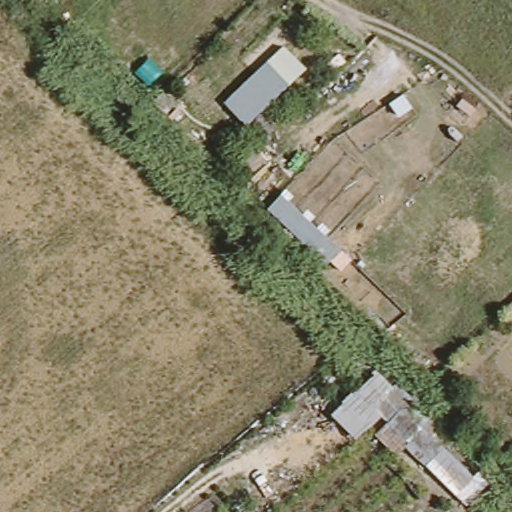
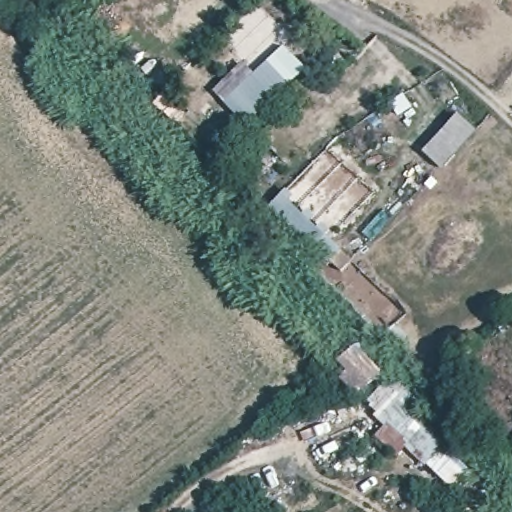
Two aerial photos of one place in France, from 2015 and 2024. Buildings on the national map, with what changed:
unchanged [(224,101),(284,45),(307,68),(247,123),(224,101)]
new [(476,131),(441,170),(422,152),(455,114),(476,131)]
unchanged [(329,260),(326,263),(268,209),(281,193),(340,249),(351,261),(340,271),(329,260)]
unchanged [(377,370),(395,386),(398,383),(450,438),(444,446),(474,477),(479,473),(491,486),(467,508),(406,445),(396,455),(376,434),(387,422),(382,416),(356,439),(332,414),(377,370)]

